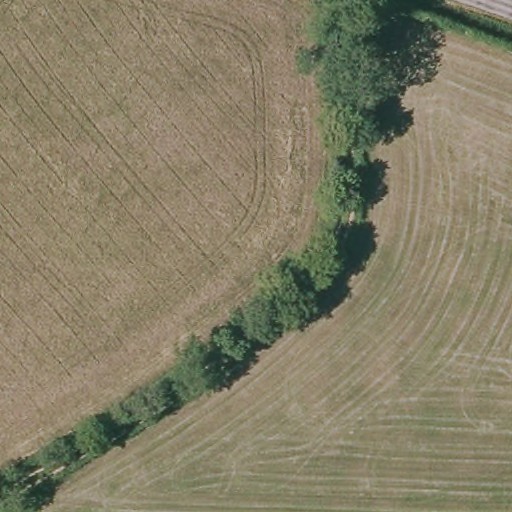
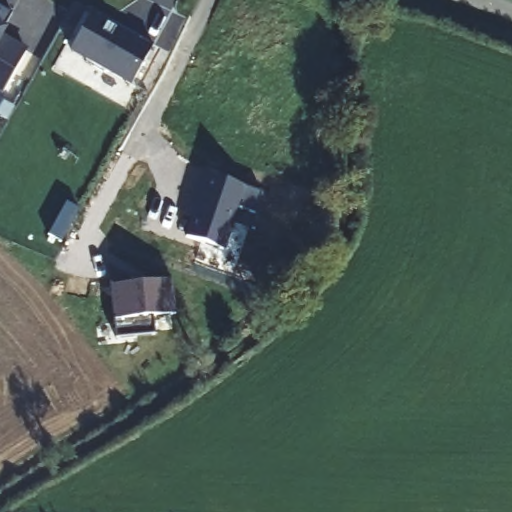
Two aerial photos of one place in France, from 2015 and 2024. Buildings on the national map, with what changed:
new [(0,92),(0,5),(12,12),(1,34),(28,49),(2,93),(0,92)]
new [(72,50),(92,13),(138,40),(140,36),(154,45),(132,84),(72,50)]
new [(255,212),(238,208),(224,250),(184,236),(205,173),(262,192),(255,212)]
new [(176,314),(152,316),(155,334),(113,337),(108,285),(172,280),(176,314)]

